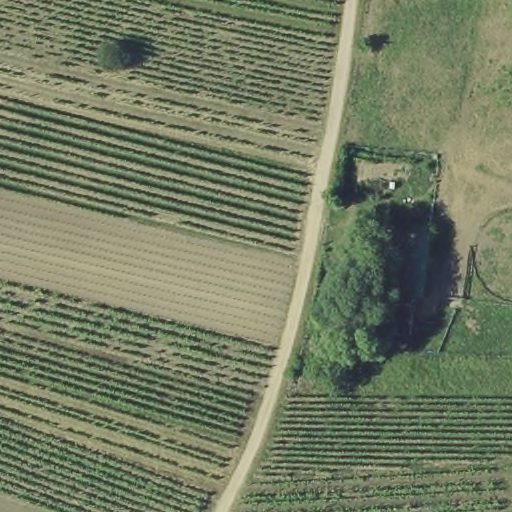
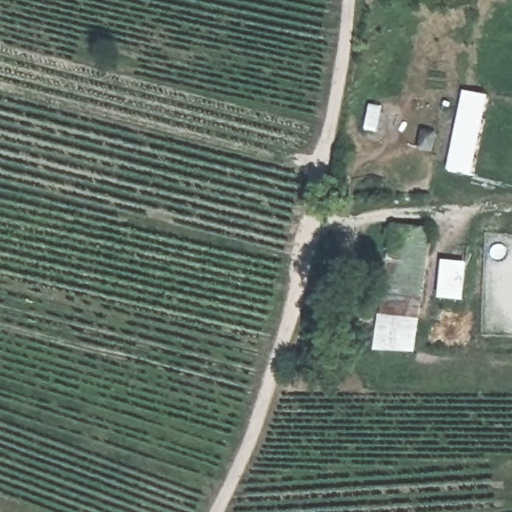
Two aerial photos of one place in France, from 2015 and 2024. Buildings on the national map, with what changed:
unchanged [(426,303),(386,298),(396,226),(434,232),(426,303)]
new [(413,353),(372,349),(376,313),(380,314),(382,298),(386,298),(420,303),(413,353)]

